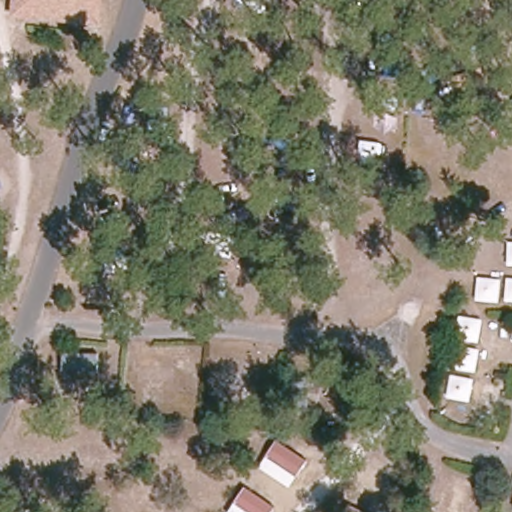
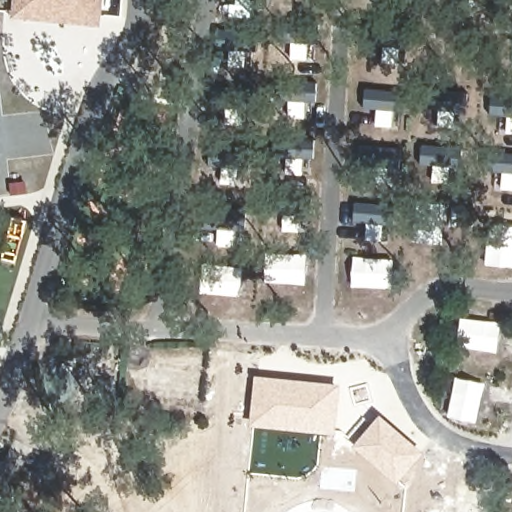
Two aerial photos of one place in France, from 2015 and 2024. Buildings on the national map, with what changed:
unchanged [(18,12),(19,0),(98,0),(97,14),(57,10),(57,16),(33,14),(18,12)]
new [(342,384),(336,435),(249,426),(255,376),(342,384)]
new [(380,414),(424,452),(397,484),(354,446),(380,414)]

